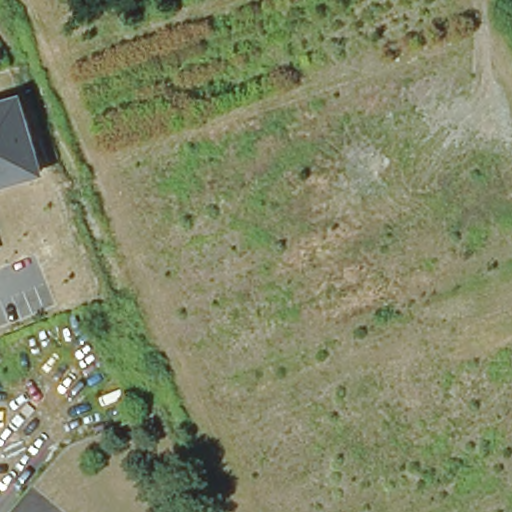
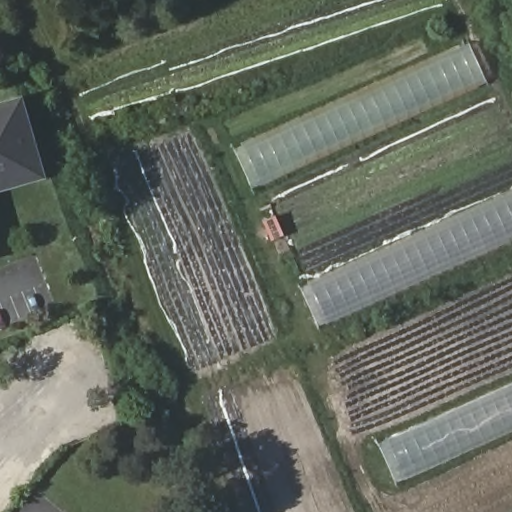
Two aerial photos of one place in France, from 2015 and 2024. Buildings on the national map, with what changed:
new [(233,148),(469,42),(487,83),(252,190),(233,148)]
unchanged [(46,176),(0,191),(0,102),(24,96),(46,176)]
new [(512,189),(512,240),(318,327),(299,285),(512,189)]
new [(512,382),(512,431),(396,484),(377,442),(512,382)]

